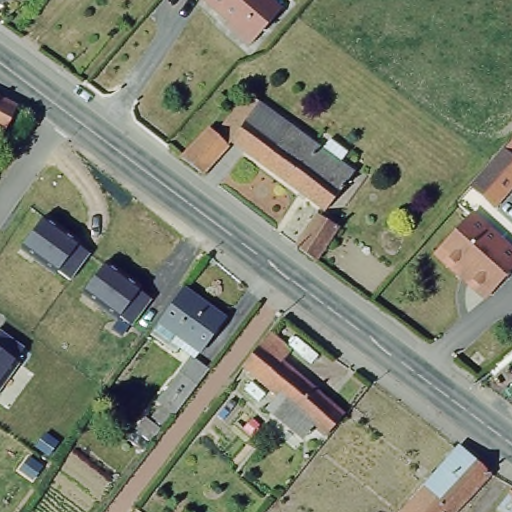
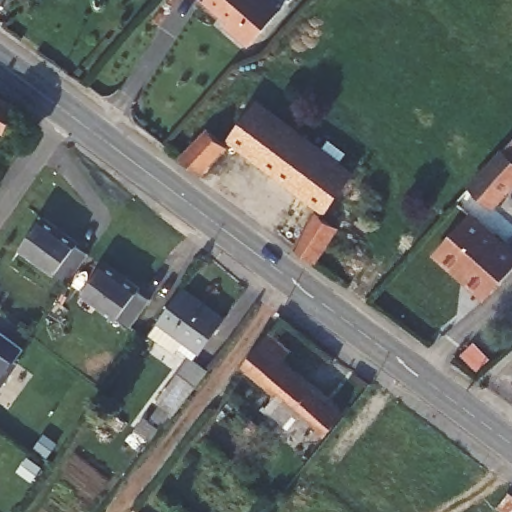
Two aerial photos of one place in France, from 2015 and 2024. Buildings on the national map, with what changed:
unchanged [(204,0),(269,0),(280,10),(249,46),(233,31),(226,25),(228,21),(204,0)]
unchanged [(248,89),(321,144),(329,134),(346,147),(339,158),(353,168),(324,205),(231,135),(228,139),(216,129),(248,89)]
unchanged [(16,106),(3,131),(0,129),(0,98),(16,106)]
unchanged [(216,129),(228,139),(202,169),(181,153),(208,124),(216,129)]
unchanged [(494,161),(503,150),(512,158),(512,185),(493,207),(471,187),(494,161)]
unchanged [(338,222),(316,257),(295,241),(316,209),(338,222)]
unchanged [(434,254),(471,214),(512,251),(512,267),(487,295),(484,298),(462,278),(434,254)]
unchanged [(43,217),(79,243),(78,246),(89,255),(70,282),(58,273),(56,275),(20,249),(43,217)]
unchanged [(106,263),(142,290),(140,292),(152,301),(132,328),(120,319),(118,321),(83,295),(106,263)]
unchanged [(179,342),(175,348),(148,328),(158,316),(181,283),(224,314),(200,346),(199,346),(193,353),(179,342)]
unchanged [(269,327),(289,345),(279,356),(343,409),(325,429),(314,419),(303,432),(266,402),(278,389),(243,360),(269,327)]
unchanged [(23,351),(15,363),(17,365),(0,389),(0,334),(23,351)]
unchanged [(160,401),(161,399),(156,396),(190,352),(194,355),(207,365),(173,410),(171,409),(162,420),(151,412),(160,401)]
unchanged [(143,412),(158,423),(149,435),(134,424),(143,412)]
unchanged [(246,413),(259,425),(249,435),(236,422),(246,413)]
demolished [(403,511),(426,485),(424,484),(456,448),(469,457),(471,456),(489,473),(453,512),(404,512),(403,511)]
unchanged [(512,482),(512,510),(509,508),(505,512),(504,512),(491,503),(509,481),(512,482)]

